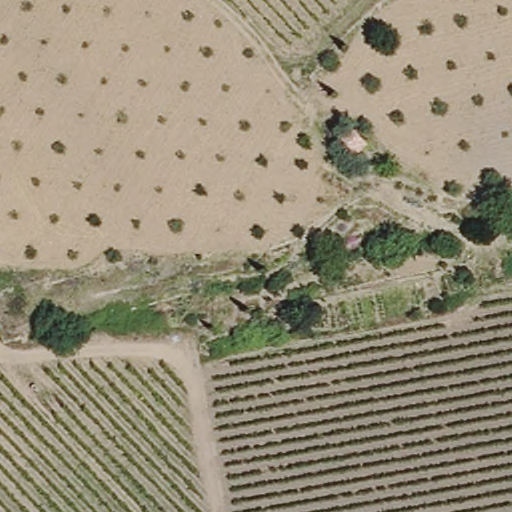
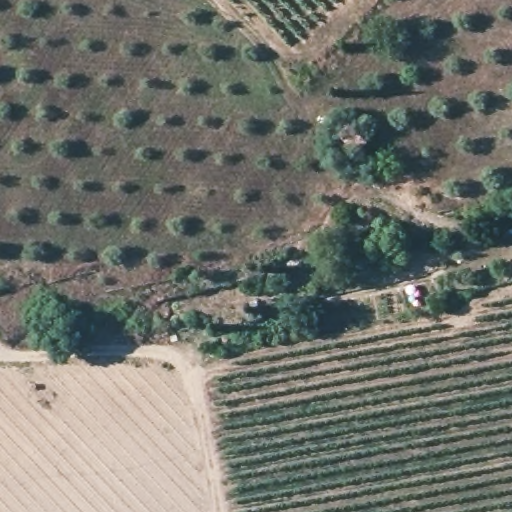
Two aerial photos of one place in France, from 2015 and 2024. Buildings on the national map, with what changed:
unchanged [(336,134),(348,123),(367,144),(355,158),(336,134)]

